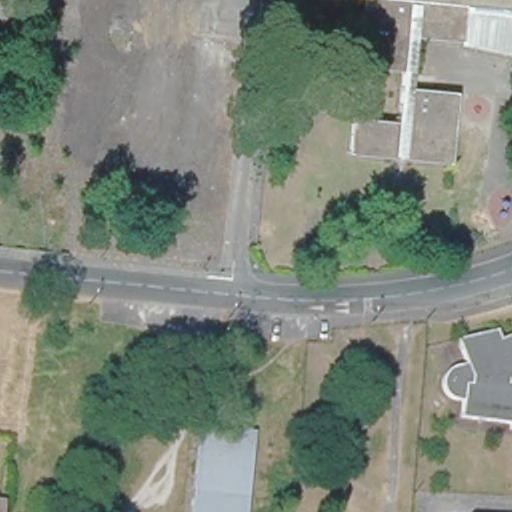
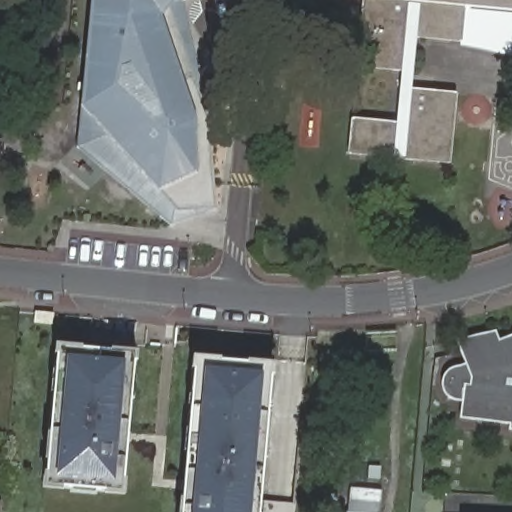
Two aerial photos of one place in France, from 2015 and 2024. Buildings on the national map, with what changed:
new [(184,1),(212,124),(218,209),(170,227),(76,147),(82,107),(92,0),(186,0),(184,1)]
unchanged [(512,16),(464,11),(460,47),(415,43),(410,93),(455,98),(448,168),(345,157),(349,119),(394,124),(399,75),(353,70),(355,52),(360,0),(512,0),(512,16)]
unchanged [(512,54),(511,58),(460,47),(464,11),(512,16),(512,54)]
demolished [(130,40),(219,49),(214,107),(125,99),(130,40)]
unchanged [(509,426),(460,418),(463,403),(460,402),(456,401),(452,398),(450,394),(448,389),(449,383),(450,377),(452,372),(455,370),(459,368),(463,367),(467,369),(460,344),(498,337),(499,343),(512,339),(512,434),(508,433),(509,426)]
new [(123,493),(45,485),(58,344),(136,351),(123,493)]
new [(182,512),(195,355),(274,362),(261,512),(182,512)]
demolished [(249,434),(243,512),(194,512),(201,429),(249,434)]

